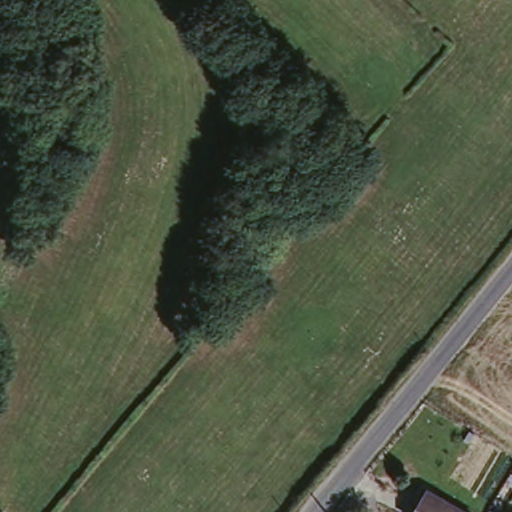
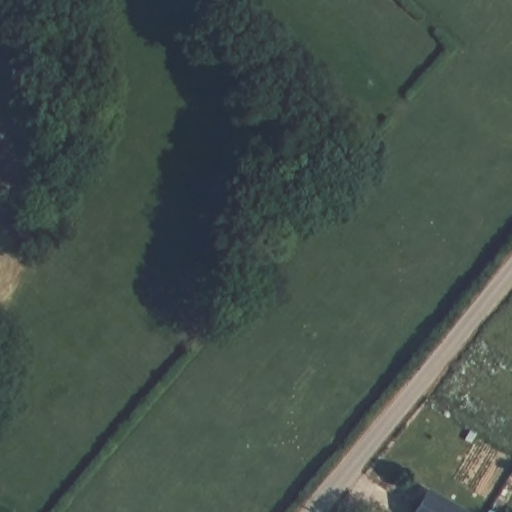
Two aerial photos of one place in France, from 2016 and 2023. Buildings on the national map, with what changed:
unchanged [(468,512),(413,512),(428,488),(468,512)]

